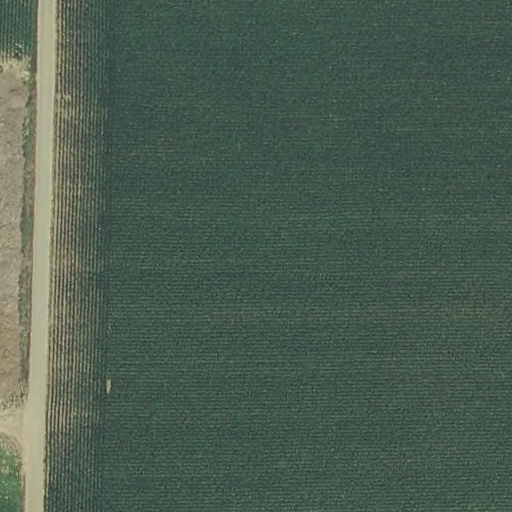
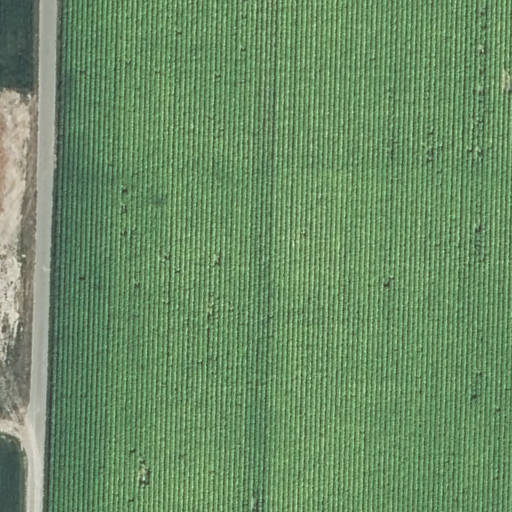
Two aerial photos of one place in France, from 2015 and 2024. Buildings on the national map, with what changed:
[]

